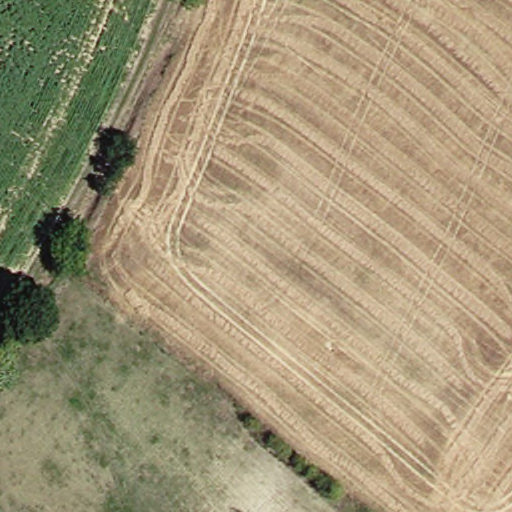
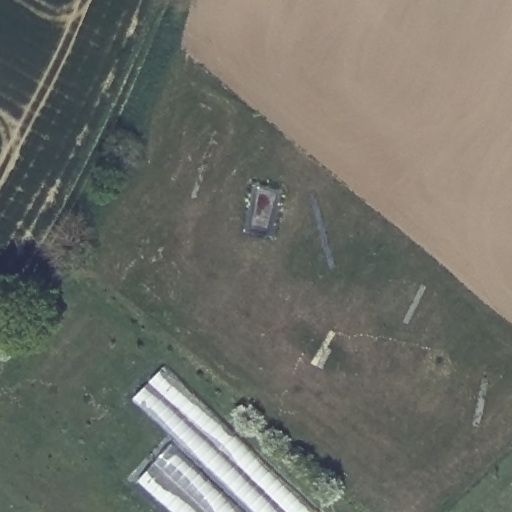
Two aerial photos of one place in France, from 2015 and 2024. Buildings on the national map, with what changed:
new [(312,512),(169,512),(135,480),(175,440),(132,401),(163,371),(312,512)]

